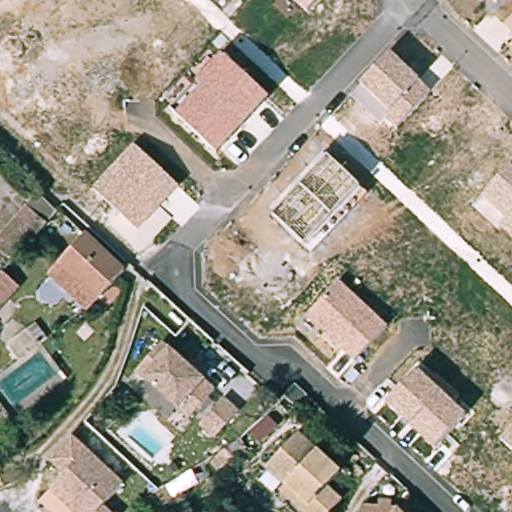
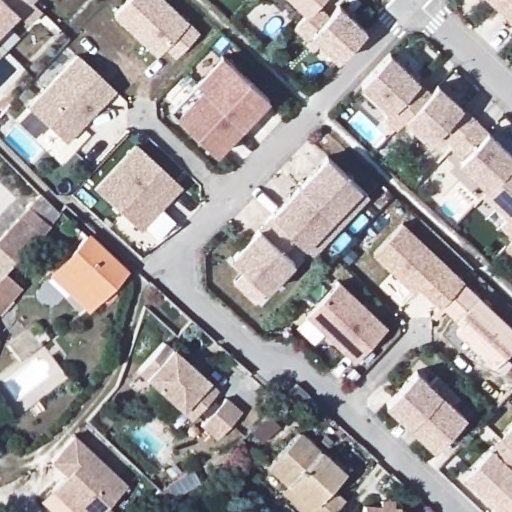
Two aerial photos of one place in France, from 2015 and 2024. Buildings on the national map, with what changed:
new [(42,11),(30,25),(18,13),(0,31),(0,0),(31,0),(30,0),(42,11)]
new [(165,0),(198,31),(176,55),(166,45),(158,54),(114,12),(126,0),(165,0)]
unchanged [(292,0),(321,0),(309,16),(292,0)]
unchanged [(490,0),(502,0),(497,6),(490,0)]
new [(329,15),(340,4),(367,29),(338,62),(311,36),(307,41),(294,27),(307,14),(309,16),(318,5),(329,15)]
unchanged [(223,54),(268,99),(217,155),(178,115),(173,110),(197,82),(223,54)]
unchanged [(431,94),(399,130),(387,121),(392,111),(362,85),(390,54),(418,80),(431,94)]
new [(75,55),(114,91),(64,145),(25,107),(75,55)]
new [(439,84),(463,105),(478,119),(454,145),(439,131),(430,141),(407,121),(431,94),(439,84)]
new [(459,163),(461,160),(449,150),(478,119),(488,130),(512,152),(512,162),(509,165),(489,190),(459,163)]
unchanged [(138,229),(96,189),(133,146),(178,185),(138,229)]
new [(328,155),(362,190),(369,195),(314,256),(307,249),(296,239),(271,215),(328,155)]
unchanged [(499,228),(507,216),(486,196),(489,190),(509,165),(512,167),(512,237),(499,228)]
unchanged [(0,236),(23,214),(19,210),(34,194),(58,215),(43,231),(9,267),(0,257),(0,236)]
new [(285,252),(295,262),(269,292),(265,290),(254,301),(232,282),(244,270),(231,258),(259,227),(271,215),(296,239),(285,252)]
new [(415,295),(373,255),(404,224),(464,281),(481,296),(512,327),(512,350),(494,368),(456,332),(462,326),(457,320),(442,305),(439,308),(420,289),(415,295)]
new [(506,248),(512,241),(512,254),(506,248)]
unchanged [(56,267),(81,243),(118,280),(93,307),(56,267)]
unchanged [(387,326),(358,361),(308,317),(339,281),(387,326)]
unchanged [(0,312),(0,289),(10,300),(0,312)]
unchanged [(165,343),(216,392),(189,421),(138,370),(165,343)]
unchanged [(441,379),(460,397),(451,402),(466,417),(434,450),(386,407),(417,370),(432,384),(441,379)]
unchanged [(226,401),(240,415),(213,444),(198,428),(226,401)]
unchanged [(502,441),(512,429),(512,451),(502,441)]
unchanged [(41,506),(55,492),(70,475),(56,461),(78,437),(131,490),(109,512),(47,512),(41,506)]
new [(464,479),(493,450),(502,441),(512,451),(512,512),(498,512),(464,479)]
unchanged [(289,443),(329,484),(319,495),(333,510),(330,512),(296,512),(259,473),(289,443)]
unchanged [(366,500),(384,502),(384,496),(397,498),(397,505),(400,505),(407,512),(364,512),(366,500)]

